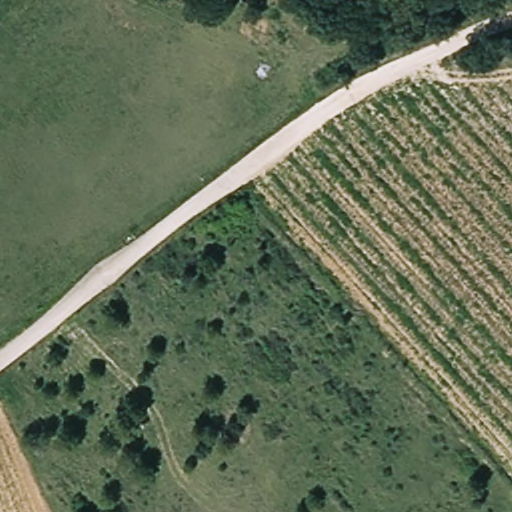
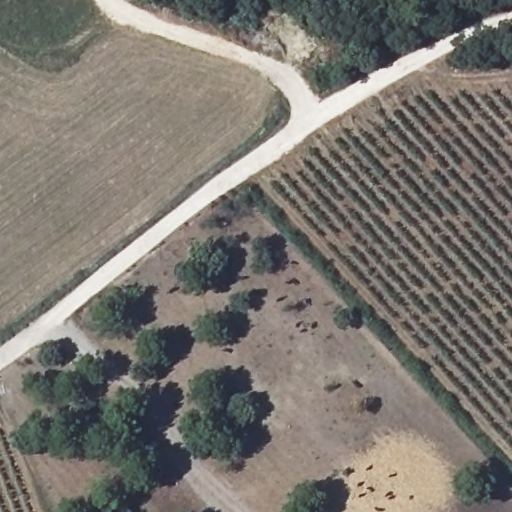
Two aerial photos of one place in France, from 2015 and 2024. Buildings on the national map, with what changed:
[]

